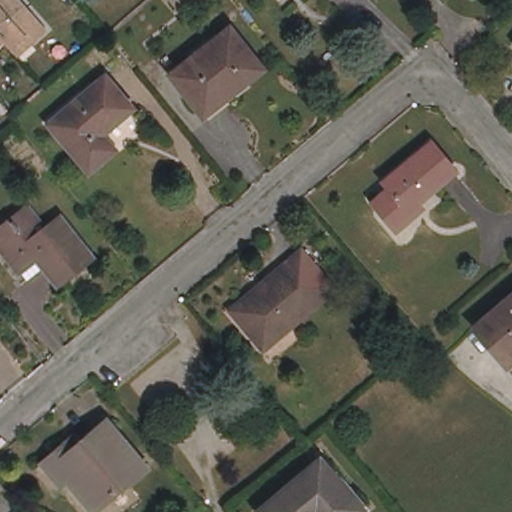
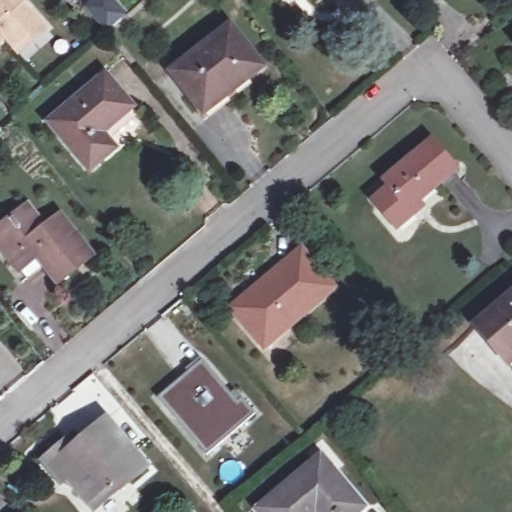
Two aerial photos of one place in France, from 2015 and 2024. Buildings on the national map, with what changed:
unchanged [(44,22),(30,35),(14,49),(9,42),(2,35),(0,37),(0,0),(25,0),(44,22)]
new [(100,0),(107,0),(123,19),(107,33),(88,11),(100,0)]
unchanged [(263,67),(233,90),(228,83),(201,106),(174,72),(232,27),(263,67)]
unchanged [(129,106),(98,133),(111,148),(86,170),(45,122),(102,74),(129,106)]
unchanged [(421,214),(404,228),(379,199),(396,185),(391,179),(438,140),(463,169),(423,201),(429,208),(421,214)]
unchanged [(55,288),(34,262),(16,276),(0,257),(0,238),(10,230),(6,226),(24,211),(38,228),(33,231),(36,236),(55,221),(87,261),(55,288)]
unchanged [(335,287),(265,346),(233,309),(303,250),(335,287)]
unchanged [(474,321),(512,289),(512,345),(502,353),(474,321)]
new [(203,361),(237,403),(241,399),(254,415),(207,456),(158,398),(203,361)]
unchanged [(148,466),(131,481),(129,479),(95,508),(68,478),(63,482),(45,461),(69,439),(76,447),(108,420),(148,466)]
unchanged [(317,458),(358,508),(353,512),(259,512),(257,510),(317,458)]

